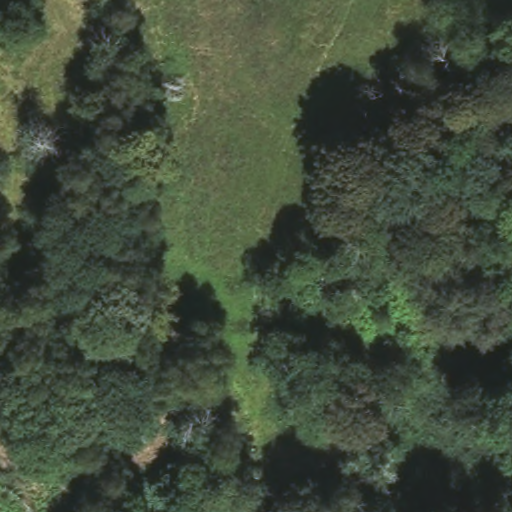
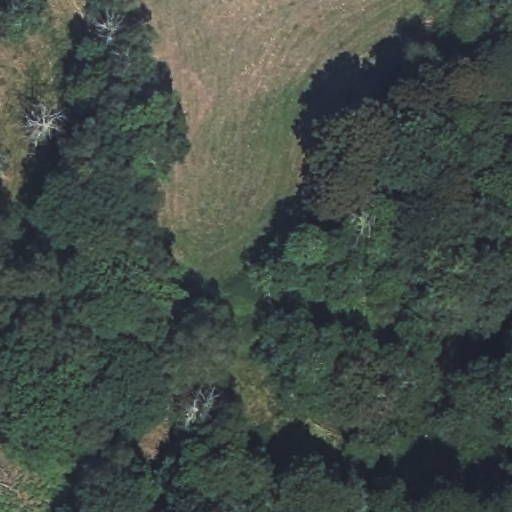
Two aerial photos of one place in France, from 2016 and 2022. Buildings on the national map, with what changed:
[]

